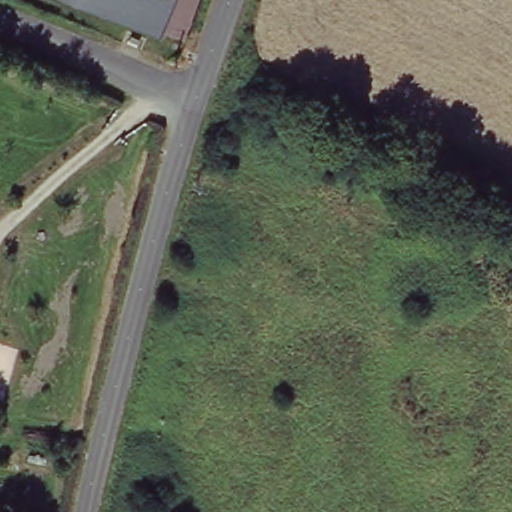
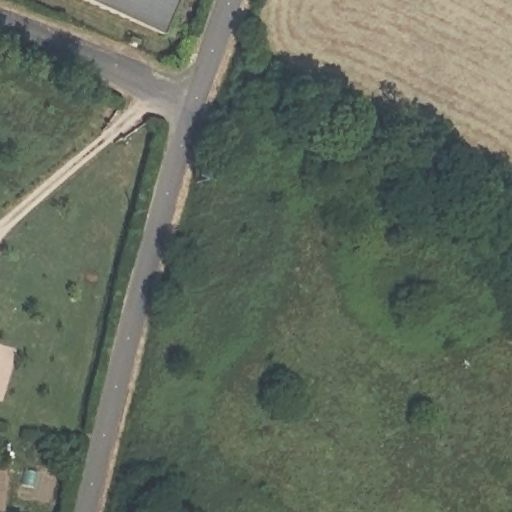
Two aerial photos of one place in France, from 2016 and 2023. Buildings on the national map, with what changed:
unchanged [(175,0),(159,38),(75,0),(175,0)]

